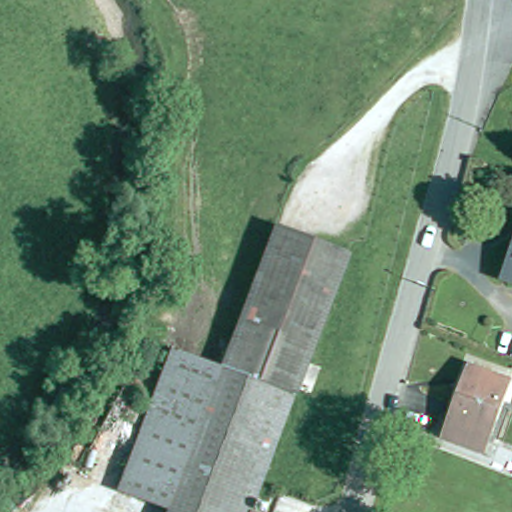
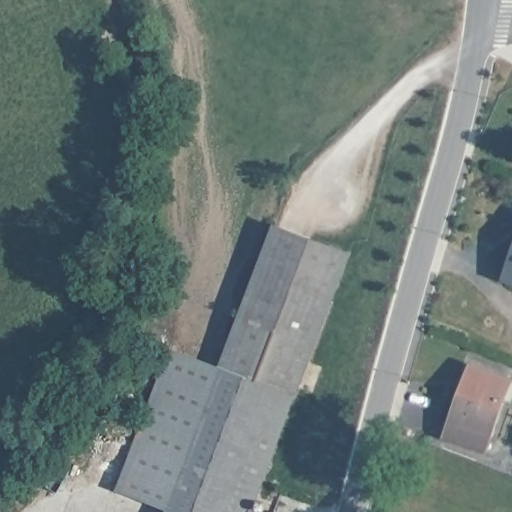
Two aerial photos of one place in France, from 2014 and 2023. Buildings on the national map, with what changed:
unchanged [(348,253),(251,512),(166,512),(167,510),(117,491),(172,349),(221,368),(275,226),(348,253)]
unchanged [(512,258),(512,279),(505,276),(512,258)]
unchanged [(508,385),(484,453),(449,440),(454,427),(450,426),(471,371),(508,385)]

